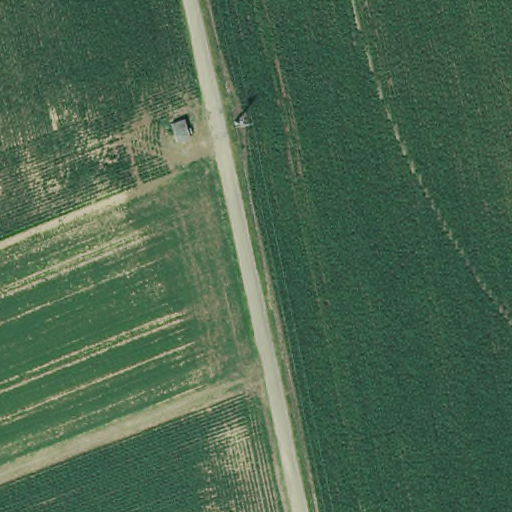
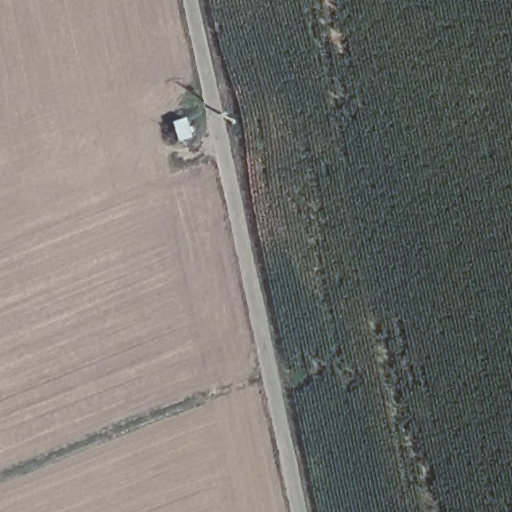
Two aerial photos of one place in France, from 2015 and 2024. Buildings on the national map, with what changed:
unchanged [(204,133),(198,135),(193,117),(200,115),(204,133)]

